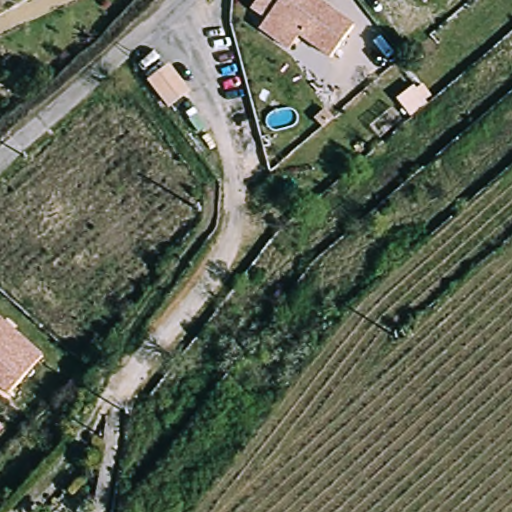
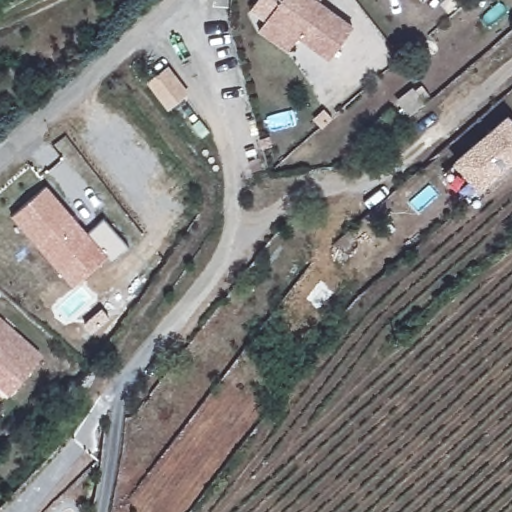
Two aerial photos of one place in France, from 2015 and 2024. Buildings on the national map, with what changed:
unchanged [(268,21),(249,7),(254,0),(315,0),(351,27),(328,59),(297,36),(287,49),(261,30),(268,21)]
unchanged [(193,97),(170,112),(148,84),(171,67),(193,97)]
new [(480,191),(457,164),(474,149),(476,151),(492,137),(489,134),(507,119),(512,125),(512,162),(480,191)]
new [(47,186),(89,232),(104,219),(128,247),(111,262),(108,257),(73,287),(12,216),(47,186)]
unchanged [(6,399),(0,394),(0,326),(40,362),(6,399)]

